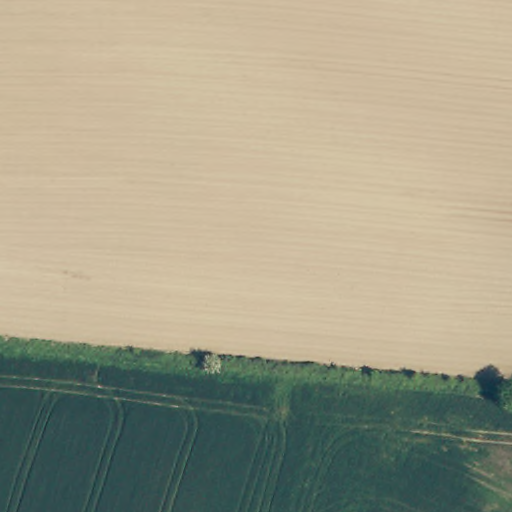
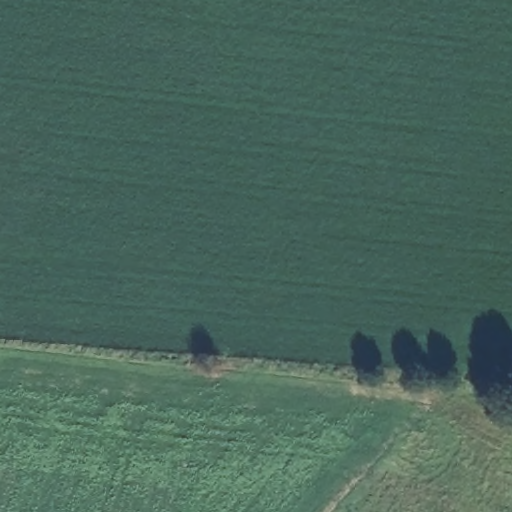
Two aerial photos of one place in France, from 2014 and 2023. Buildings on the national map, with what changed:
[]

